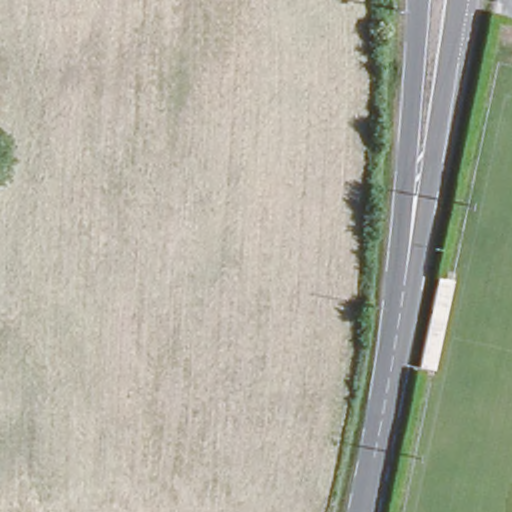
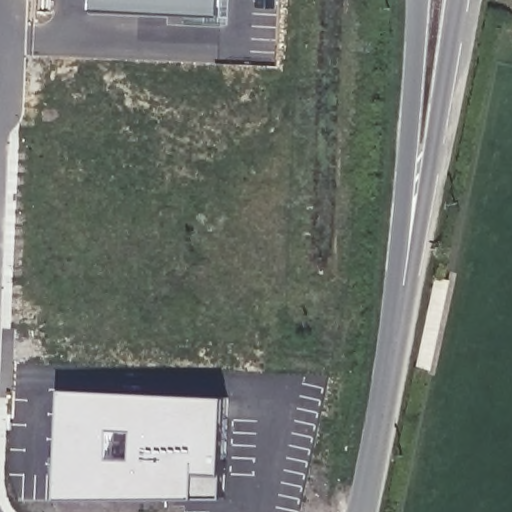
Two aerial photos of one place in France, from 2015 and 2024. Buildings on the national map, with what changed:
new [(91,11),(92,0),(220,0),(219,16),(91,11)]
unchanged [(412,357),(432,268),(447,272),(428,361),(412,357)]
new [(60,496),(62,393),(226,397),(223,500),(60,496)]

